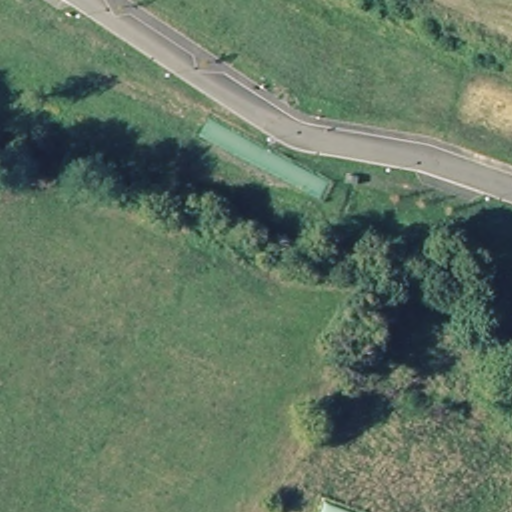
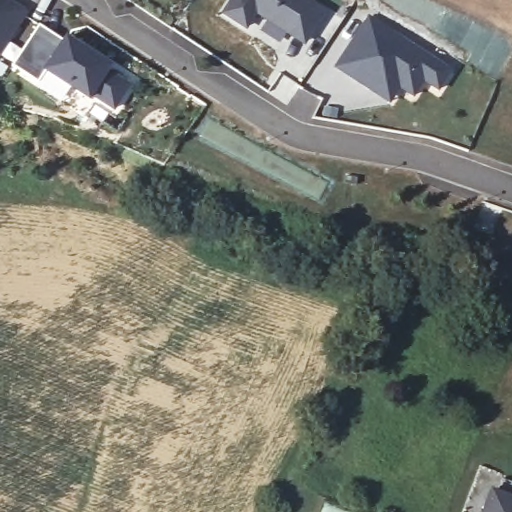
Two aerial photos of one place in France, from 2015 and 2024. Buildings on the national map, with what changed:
new [(16,5),(39,20),(12,61),(0,53),(0,0),(9,0),(16,5)]
new [(298,39),(266,17),(258,29),(237,14),(246,0),(307,0),(335,19),(318,44),(314,49),(298,39)]
new [(455,70),(440,93),(424,82),(412,98),(400,91),(390,105),(334,69),(370,16),(455,70)]
new [(62,42),(67,35),(112,67),(133,86),(113,114),(93,98),(90,102),(45,72),(37,83),(13,67),(40,27),(62,42)]
unchanged [(367,192),(365,200),(354,197),(355,190),(367,192)]
new [(512,491),(512,512),(486,512),(497,485),(512,491)]

